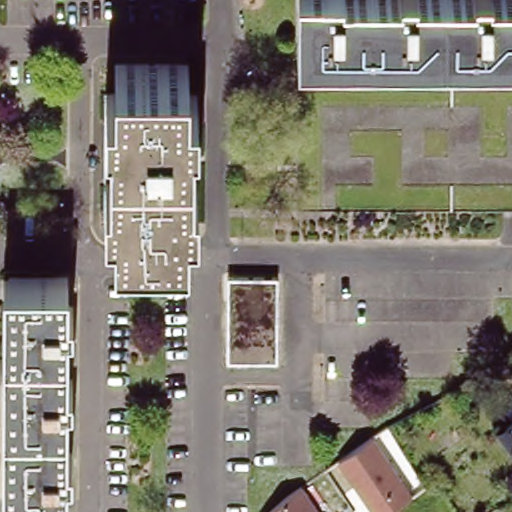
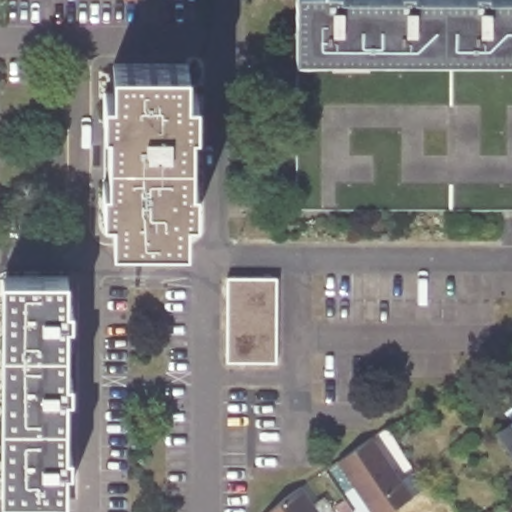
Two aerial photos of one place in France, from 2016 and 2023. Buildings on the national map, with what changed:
unchanged [(298,56),(298,0),(512,0),(512,57),(298,56)]
unchanged [(193,67),(192,124),(197,124),(196,182),(191,182),(190,242),(115,240),(117,182),(111,182),(112,122),(117,123),(118,65),(193,67)]
unchanged [(65,277),(64,306),(70,307),(70,321),(64,321),(64,379),(69,379),(69,394),(64,395),(62,452),(67,452),(67,467),(62,467),(62,497),(2,496),(6,276),(65,277)]
unchanged [(277,278),(275,361),(226,360),(229,277),(277,278)]
unchanged [(501,432),(512,424),(512,448),(501,432)]
unchanged [(372,439),(414,493),(387,512),(375,512),(338,462),(372,439)]
unchanged [(319,512),(268,512),(301,486),(319,512)]

